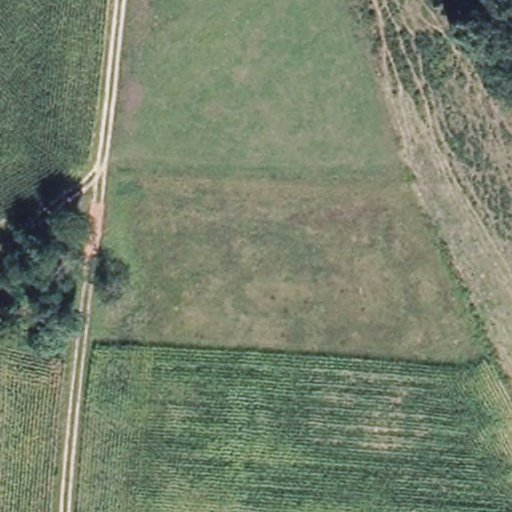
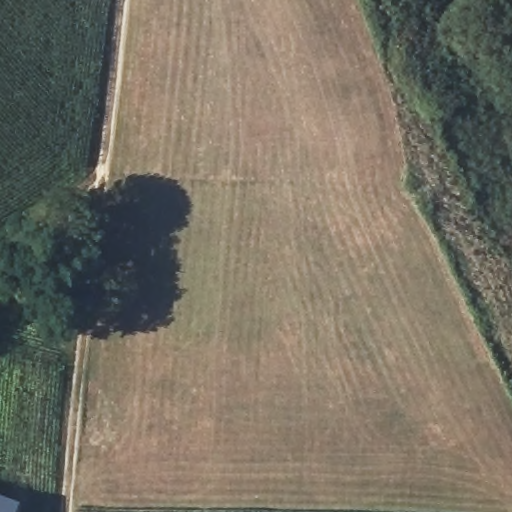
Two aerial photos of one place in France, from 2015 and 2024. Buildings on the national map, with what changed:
unchanged [(42,259),(31,248),(42,235),(55,245),(42,259)]
new [(22,502),(18,512),(0,512),(0,495),(22,502)]

